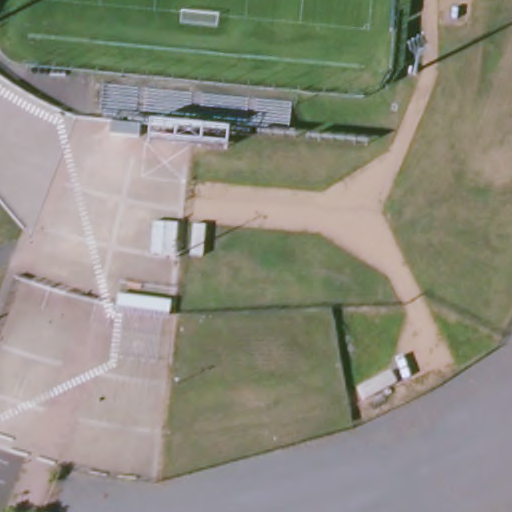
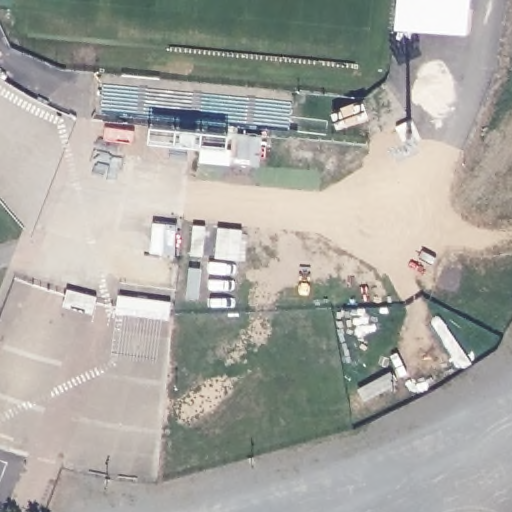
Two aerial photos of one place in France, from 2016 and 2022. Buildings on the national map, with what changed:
new [(469,0),(465,35),(393,35),(396,0),(469,0)]
unchanged [(295,103),(293,132),(102,117),(106,85),(295,103)]

